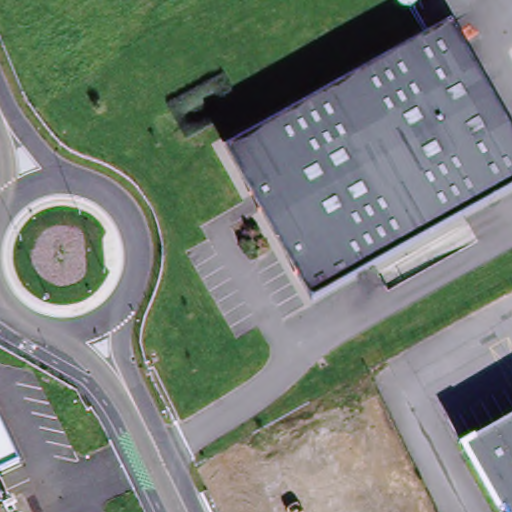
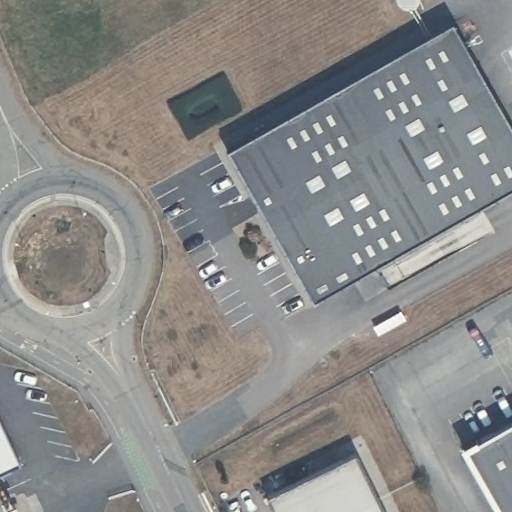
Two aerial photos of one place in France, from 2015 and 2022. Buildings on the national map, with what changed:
unchanged [(512,190),(315,300),(232,150),(453,23),(512,128),(512,190)]
unchanged [(19,457),(0,465),(0,416),(19,457)]
unchanged [(512,512),(505,512),(503,509),(500,511),(464,442),(512,417),(512,512)]
new [(379,512),(269,512),(262,500),(352,457),(379,512)]

